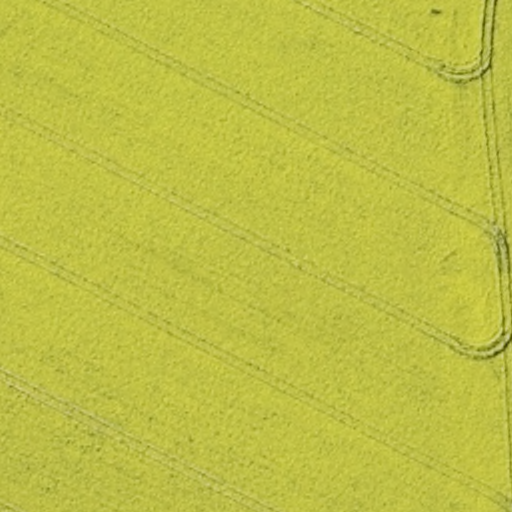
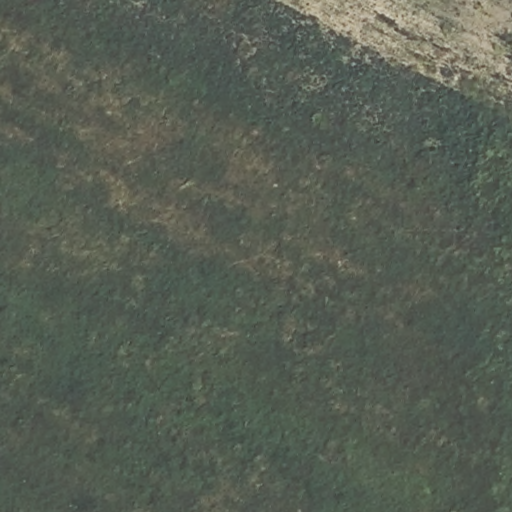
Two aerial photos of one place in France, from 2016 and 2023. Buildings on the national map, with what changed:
[]

